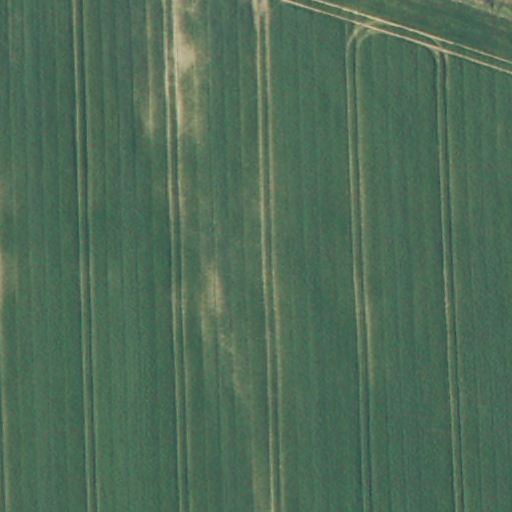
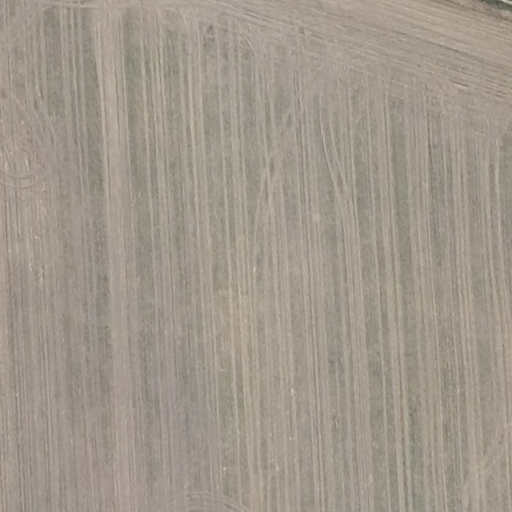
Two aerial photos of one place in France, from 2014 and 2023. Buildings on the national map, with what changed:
[]

